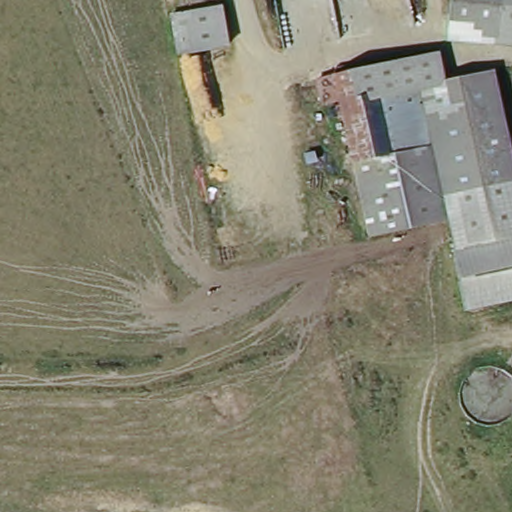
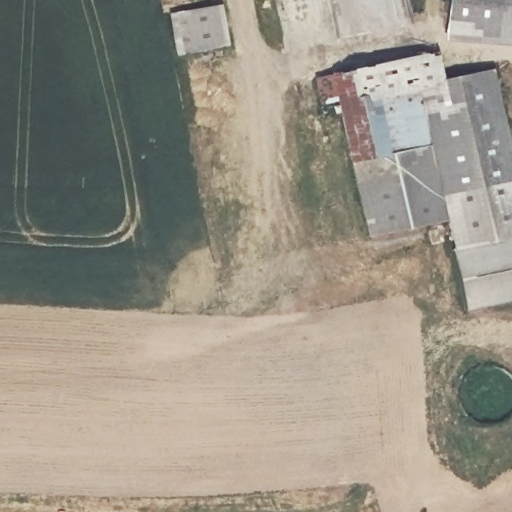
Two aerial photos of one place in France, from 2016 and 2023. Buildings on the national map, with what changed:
unchanged [(445,35),(445,24),(448,0),(512,0),(512,40),(445,35)]
unchanged [(229,48),(179,55),(175,15),(224,9),(229,48)]
unchanged [(377,98),(371,70),(431,58),(438,57),(445,88),(496,76),(512,152),(512,183),(459,193),(464,216),(448,219),(422,91),(377,98)]
unchanged [(377,98),(389,158),(352,167),(340,112),(321,114),(315,81),(371,70),(377,98)]
unchanged [(366,236),(352,167),(389,158),(377,98),(422,91),(448,219),(366,236)]
unchanged [(464,216),(459,193),(512,183),(512,302),(464,313),(448,219),(464,216)]

